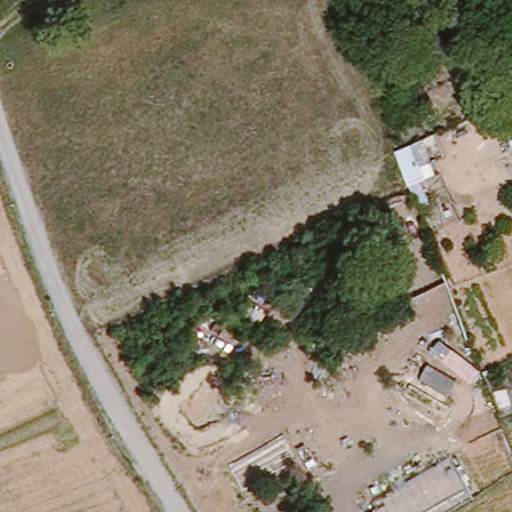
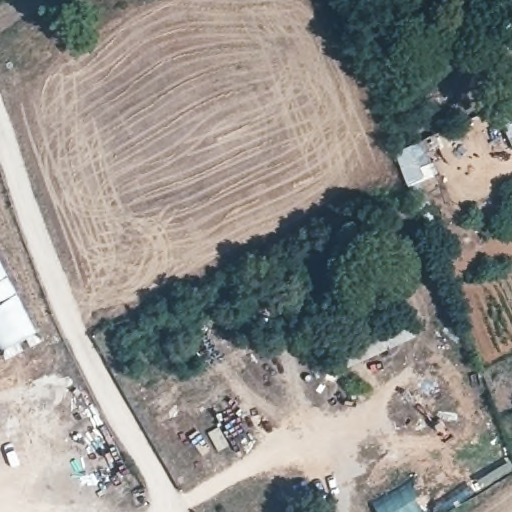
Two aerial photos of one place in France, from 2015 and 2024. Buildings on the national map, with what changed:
new [(0,267),(33,333),(0,350),(0,267)]

